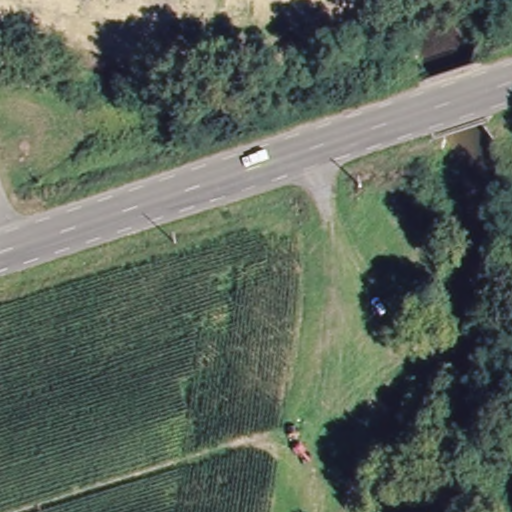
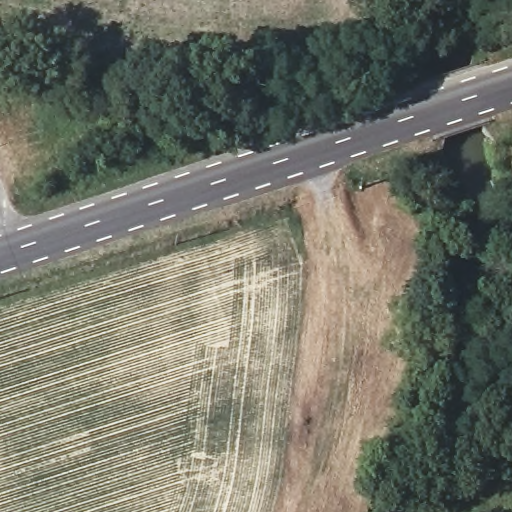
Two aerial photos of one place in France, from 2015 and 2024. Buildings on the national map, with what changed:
[]

